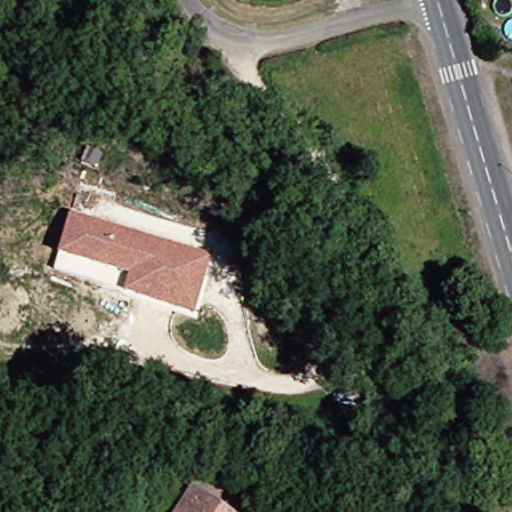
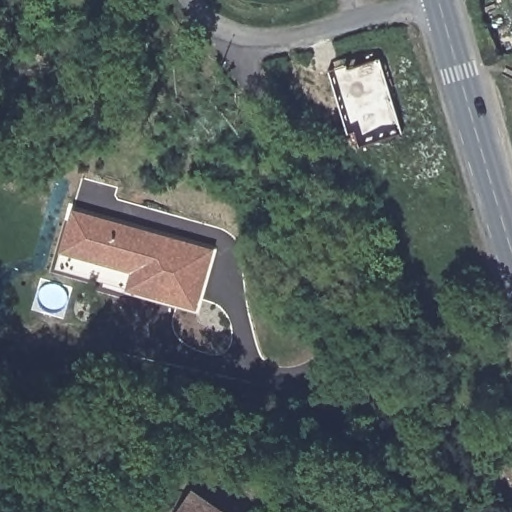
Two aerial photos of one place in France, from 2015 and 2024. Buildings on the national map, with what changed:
new [(402,134),(359,147),(355,131),(347,133),(329,70),(347,64),(348,67),(379,57),(402,134)]
unchanged [(59,252),(71,207),(214,248),(197,312),(125,291),(129,272),(59,252)]
unchanged [(183,497),(206,512),(173,512),(183,497)]

